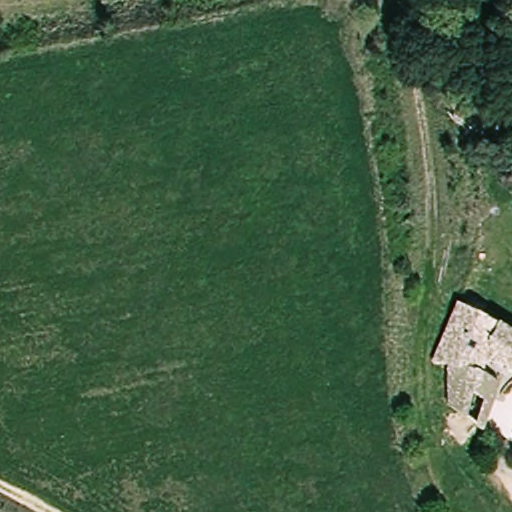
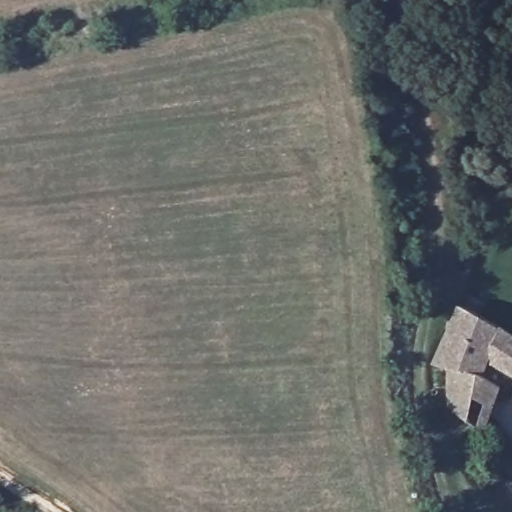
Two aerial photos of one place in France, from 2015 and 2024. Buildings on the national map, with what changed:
unchanged [(435,362),(455,319),(457,312),(460,306),(461,307),(512,336),(512,374),(510,373),(507,371),(495,391),(494,397),(491,406),(485,430),(445,401),(451,370),(435,362)]

